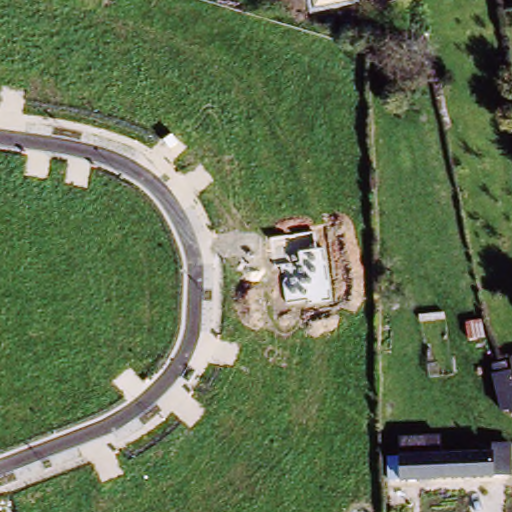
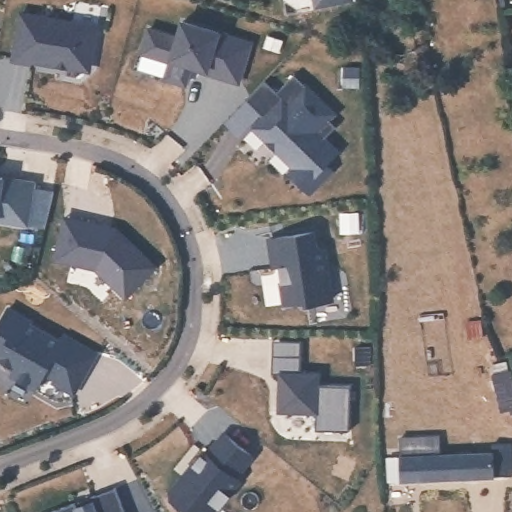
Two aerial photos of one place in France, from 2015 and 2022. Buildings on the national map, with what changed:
unchanged [(314,0),(354,0),(316,9),(314,0)]
new [(21,10),(99,23),(93,62),(87,67),(32,57),(31,60),(13,57),(21,10)]
new [(148,29),(176,37),(181,21),(249,42),(237,82),(204,72),(204,69),(190,64),(184,83),(163,77),(169,57),(158,54),(156,57),(140,52),(148,29)]
new [(264,79),(276,90),(293,72),(333,112),(327,117),(334,125),(323,137),(336,150),(326,159),(333,166),(308,191),(288,171),(293,166),(252,126),(263,115),(244,97),(264,79)]
new [(31,179),(30,184),(51,187),(44,222),(0,216),(0,174),(31,179)]
new [(120,229),(158,265),(126,297),(95,270),(53,261),(63,217),(120,229)]
new [(321,247),(327,246),(335,286),(332,287),(335,300),(283,307),(279,268),(273,269),(266,238),(316,230),(321,247)]
new [(32,320),(30,323),(60,339),(64,332),(98,353),(73,395),(45,377),(38,392),(7,373),(10,368),(0,361),(0,318),(6,307),(32,320)]
new [(301,341),(300,372),(319,372),(319,387),(349,387),(348,429),(316,430),(316,412),(278,411),(278,372),(273,372),(273,342),(301,341)]
unchanged [(512,372),(512,410),(504,412),(496,376),(512,372)]
new [(256,457),(238,477),(241,480),(214,512),(189,512),(170,498),(169,488),(204,449),(206,451),(223,430),(256,457)]
unchanged [(402,457),(402,439),(440,438),(439,456),(494,454),(494,445),(511,445),(512,477),(494,477),(404,480),(391,481),(389,458),(402,457)]
new [(92,511),(90,506),(115,496),(122,512),(88,512),(92,511)]
new [(75,512),(47,512),(56,508),(75,512)]

